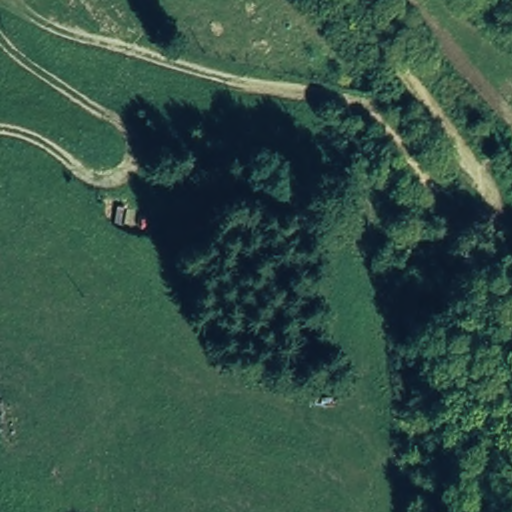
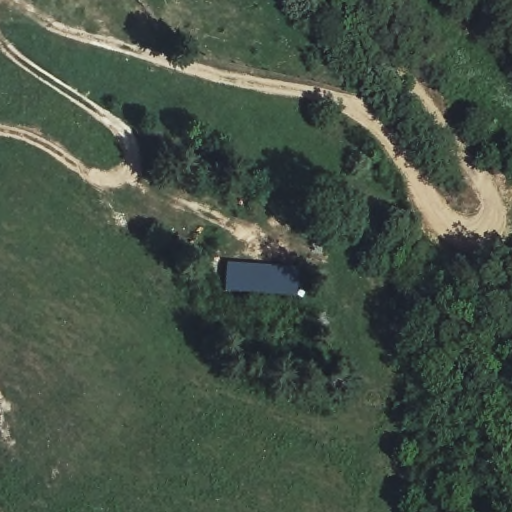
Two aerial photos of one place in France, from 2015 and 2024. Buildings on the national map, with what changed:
new [(299,267),(297,295),(225,291),(227,262),(299,267)]

